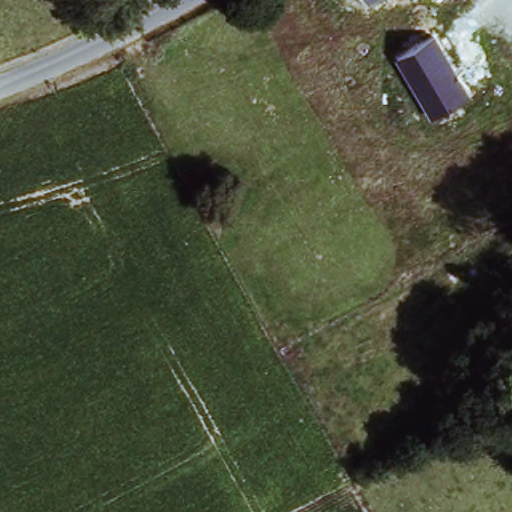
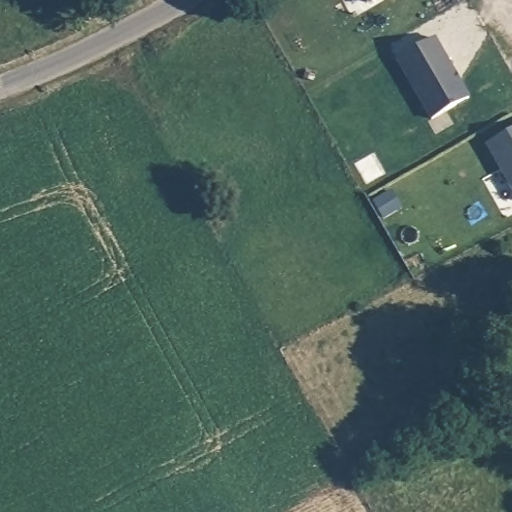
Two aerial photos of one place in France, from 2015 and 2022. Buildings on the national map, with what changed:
unchanged [(369,1),(368,0),(372,0),(369,1)]
unchanged [(435,38),(471,98),(430,121),(396,60),(435,38)]
new [(512,191),(486,146),(512,132),(512,191)]

